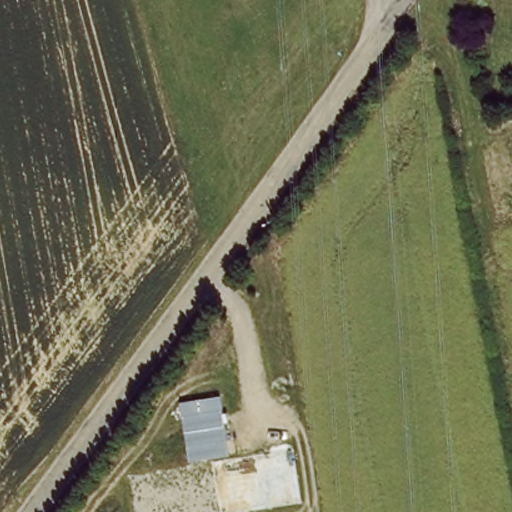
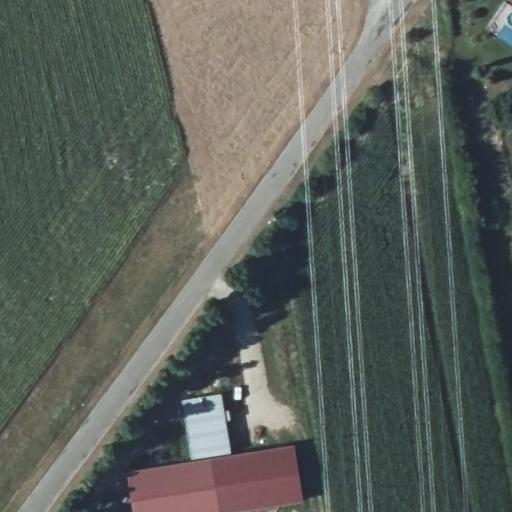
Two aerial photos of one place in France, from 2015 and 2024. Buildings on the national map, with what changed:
unchanged [(226,456),(188,462),(178,404),(216,397),(226,456)]
new [(294,449),(303,502),(246,512),(218,512),(210,462),(294,449)]
new [(210,462),(218,512),(136,512),(130,476),(210,462)]

